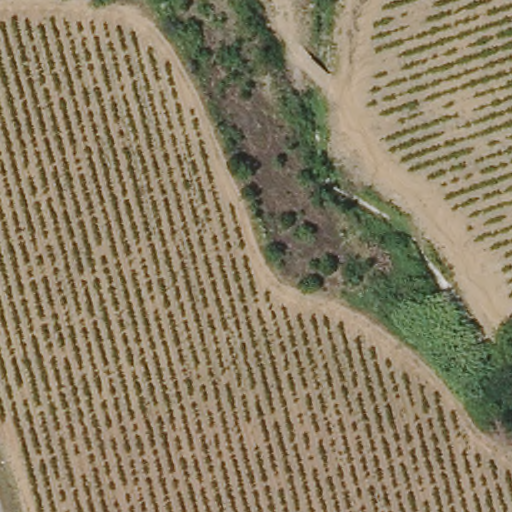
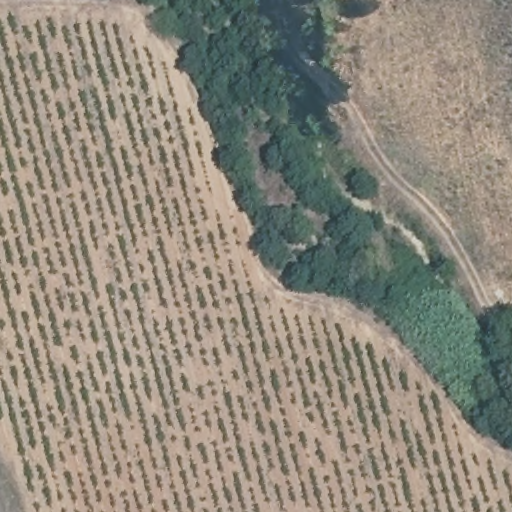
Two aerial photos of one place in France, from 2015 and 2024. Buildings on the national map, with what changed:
[]

